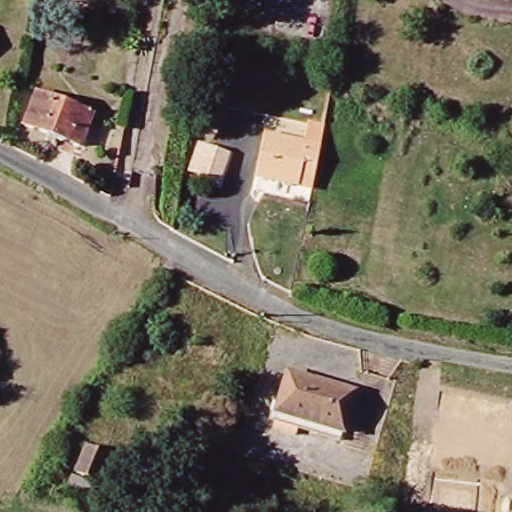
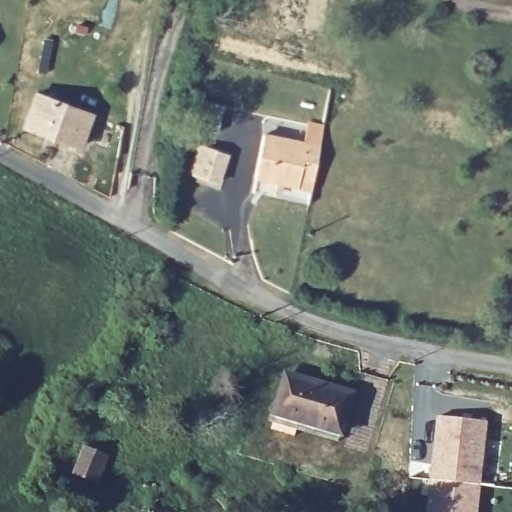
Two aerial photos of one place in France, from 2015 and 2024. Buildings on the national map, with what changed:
unchanged [(82,147),(25,127),(38,92),(95,111),(82,147)]
unchanged [(318,147),(313,180),(299,177),(298,185),(258,178),(264,139),(318,147)]
unchanged [(239,166),(223,212),(185,199),(201,152),(239,166)]
unchanged [(343,431),(279,413),(289,378),(353,397),(343,431)]
new [(438,416),(489,422),(479,512),(427,512),(438,416)]
unchanged [(71,477),(79,458),(100,466),(90,484),(71,477)]

